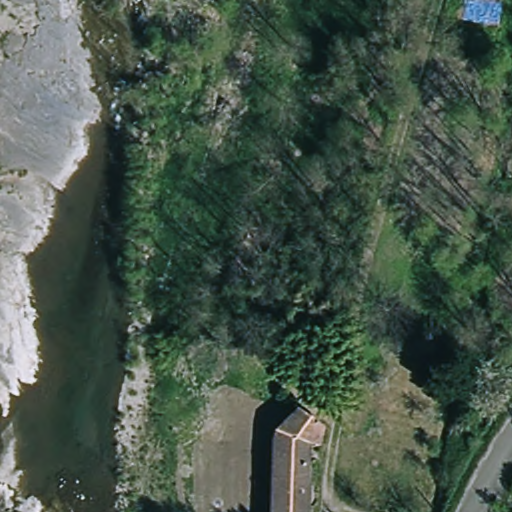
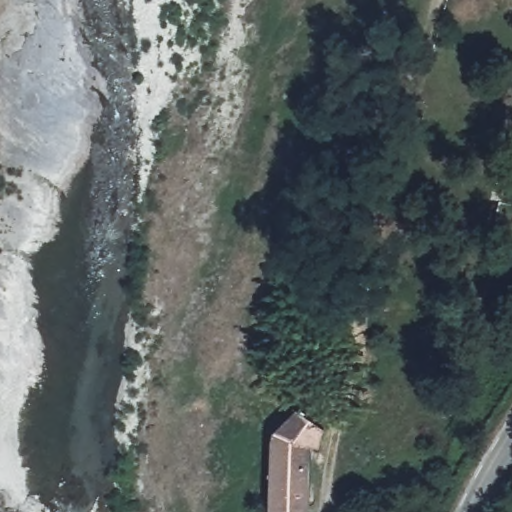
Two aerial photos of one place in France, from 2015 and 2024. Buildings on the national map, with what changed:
unchanged [(272,512),(270,430),(296,410),(302,405),(323,425),(320,450),(308,449),(310,512),(272,512)]

